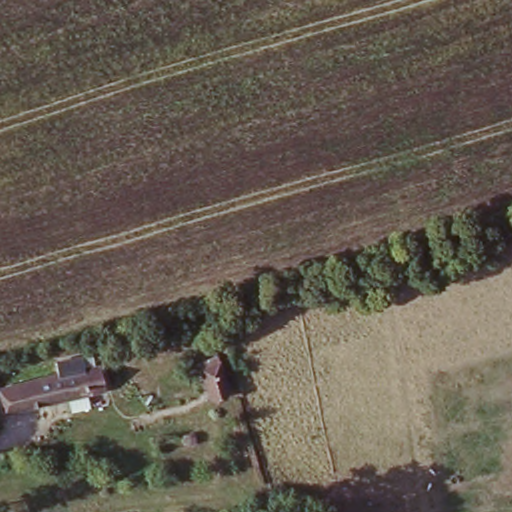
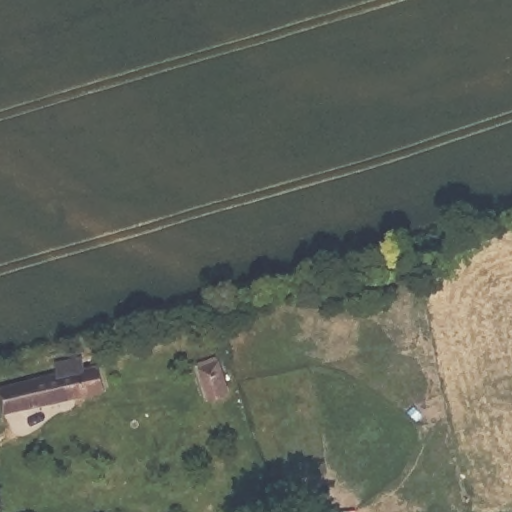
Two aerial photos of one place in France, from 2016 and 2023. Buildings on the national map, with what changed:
unchanged [(2,422),(0,406),(0,400),(60,385),(56,374),(86,368),(90,377),(100,374),(107,398),(2,422)]
unchanged [(220,368),(229,396),(211,401),(204,372),(220,368)]

